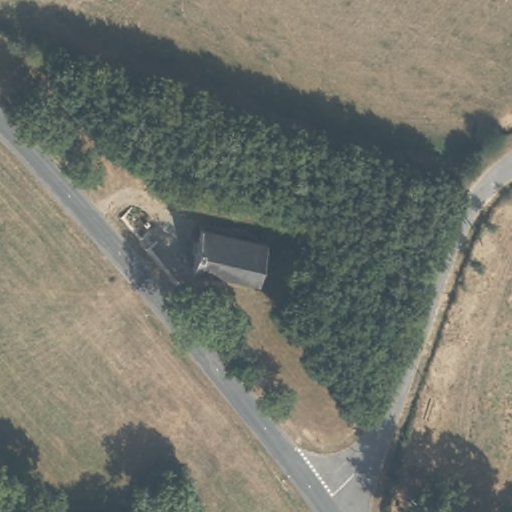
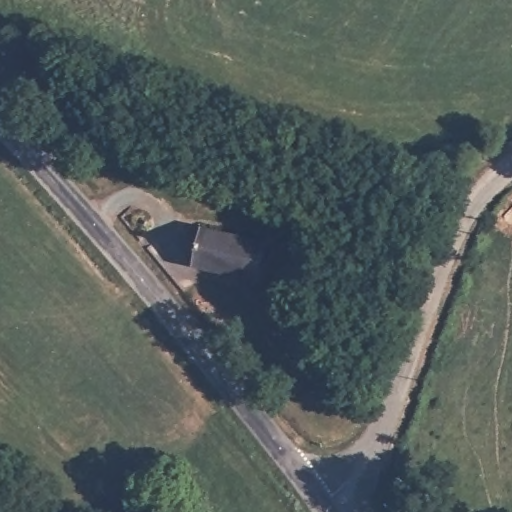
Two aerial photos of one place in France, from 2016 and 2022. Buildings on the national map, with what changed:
unchanged [(265,247),(256,287),(190,270),(199,232),(265,247)]

